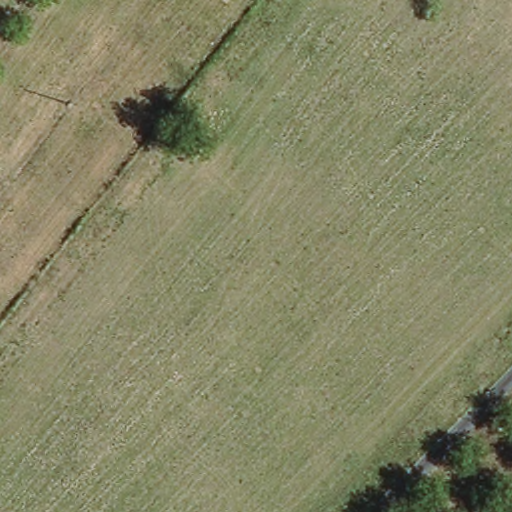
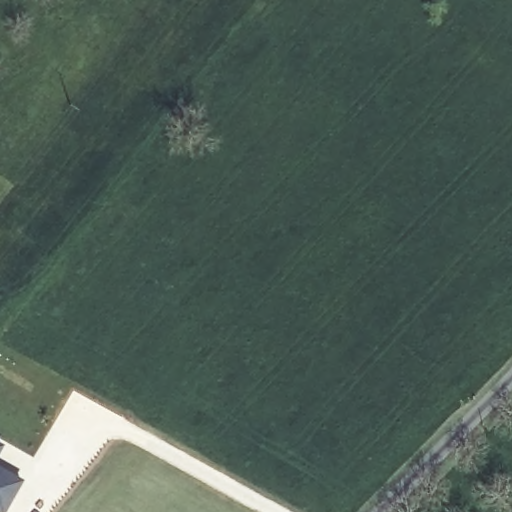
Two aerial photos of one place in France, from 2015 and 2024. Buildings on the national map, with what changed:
new [(3,442),(0,448),(0,440),(3,442)]
new [(23,478),(4,512),(0,512),(0,464),(23,478)]

